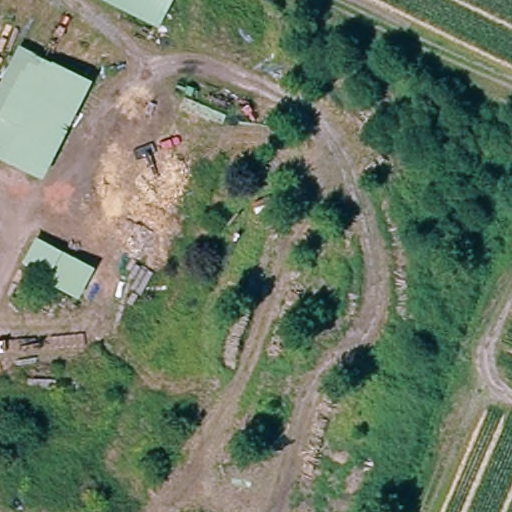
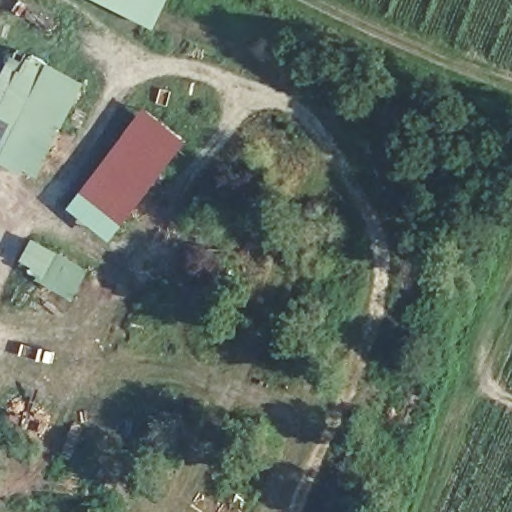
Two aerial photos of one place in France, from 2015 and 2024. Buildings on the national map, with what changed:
unchanged [(156,26),(105,0),(169,0),(156,26)]
unchanged [(40,178),(0,159),(0,98),(22,51),(85,80),(40,178)]
new [(191,141),(114,241),(71,209),(148,106),(191,141)]
unchanged [(78,296),(21,265),(35,239),(93,270),(78,296)]

